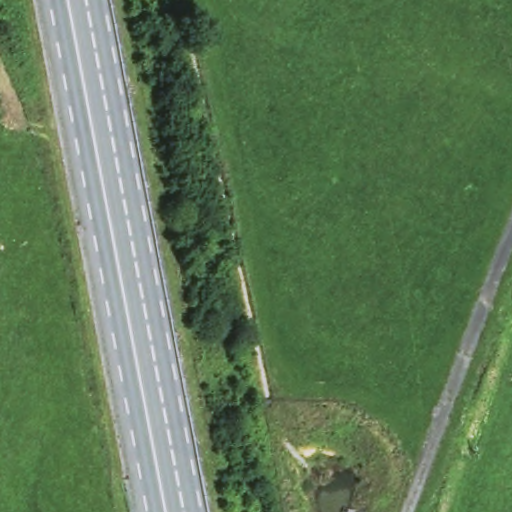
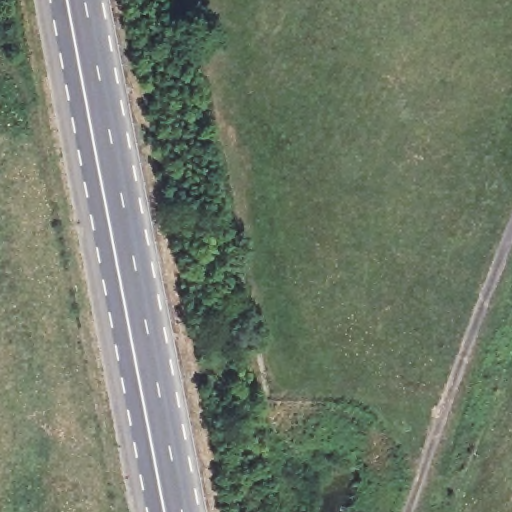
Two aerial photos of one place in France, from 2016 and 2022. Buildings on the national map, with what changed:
[]

